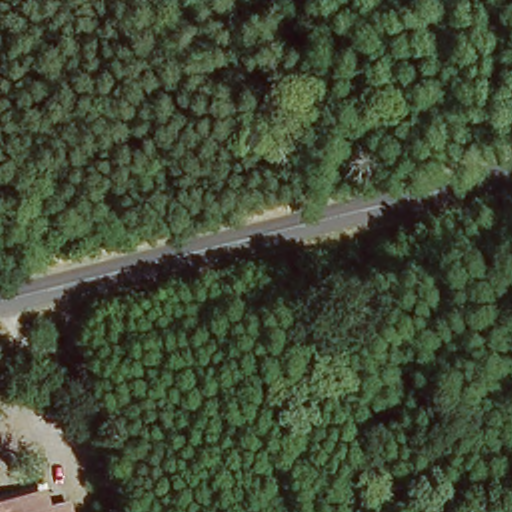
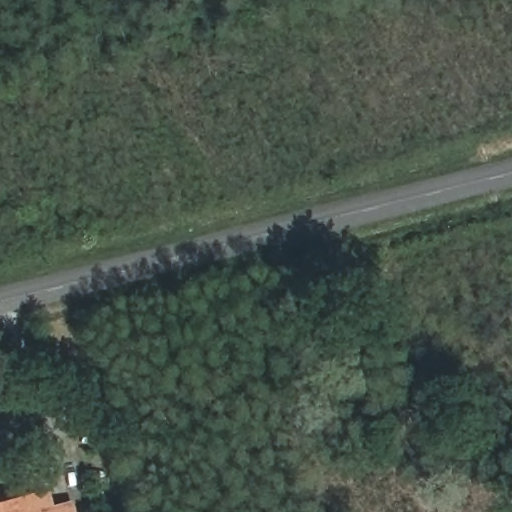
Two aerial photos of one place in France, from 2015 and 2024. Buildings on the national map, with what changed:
unchanged [(34,488),(38,498),(53,493),(57,512),(0,512),(0,498),(34,488)]

